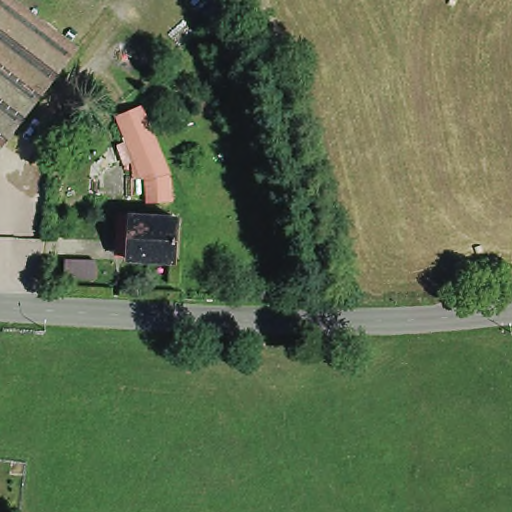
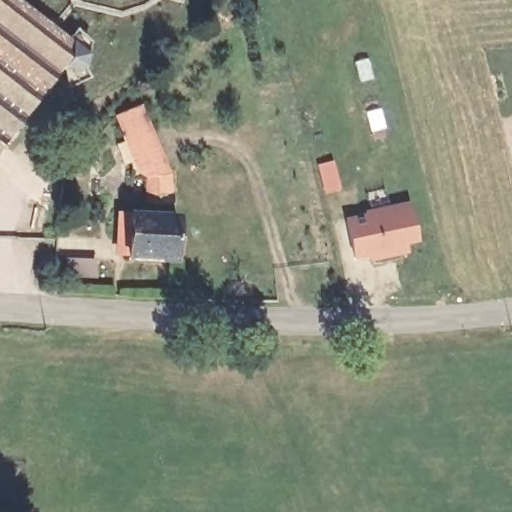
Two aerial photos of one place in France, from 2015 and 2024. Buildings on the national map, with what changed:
unchanged [(5,0),(72,51),(0,145),(0,0),(5,0)]
unchanged [(173,197),(148,199),(146,174),(133,175),(133,153),(118,112),(142,102),(170,171),(173,197)]
new [(418,250),(352,261),(342,214),(408,203),(418,250)]
unchanged [(176,258),(130,256),(131,231),(120,230),(121,212),(179,215),(176,258)]
unchanged [(94,261),(66,259),(68,242),(95,244),(94,261)]

